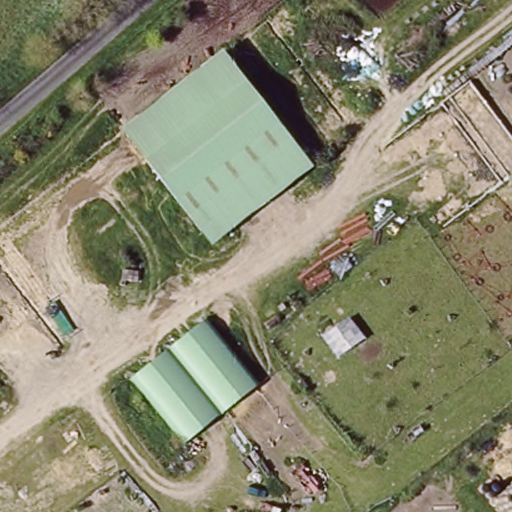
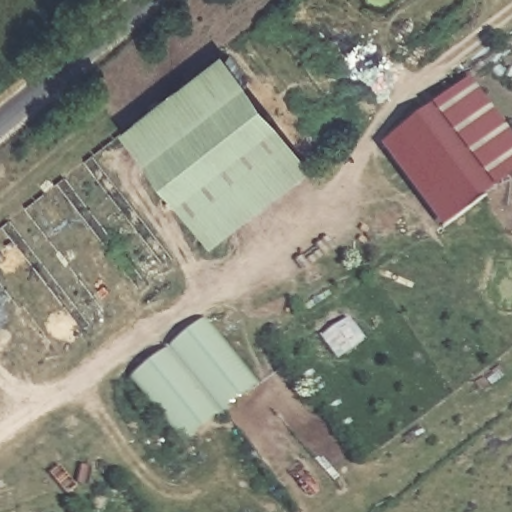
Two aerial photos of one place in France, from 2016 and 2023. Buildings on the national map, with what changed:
unchanged [(222,51),(315,167),(210,249),(120,130),(222,51)]
new [(512,134),(512,176),(445,227),(385,145),(470,79),(512,134)]
demolished [(325,297),(343,317),(319,337),(301,317),(325,297)]
unchanged [(350,317),(369,337),(345,358),(327,338),(350,317)]
unchanged [(207,324),(257,385),(184,446),(134,382),(207,324)]

